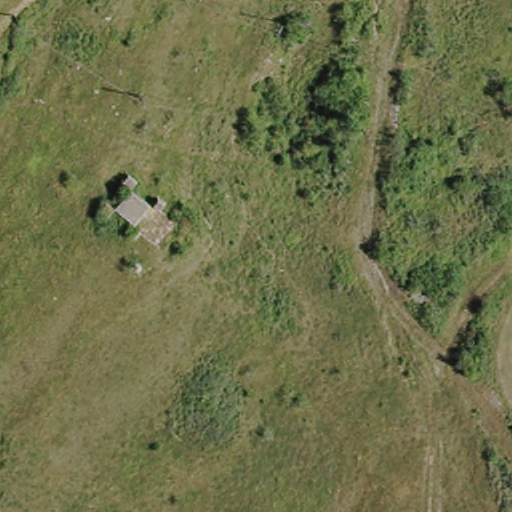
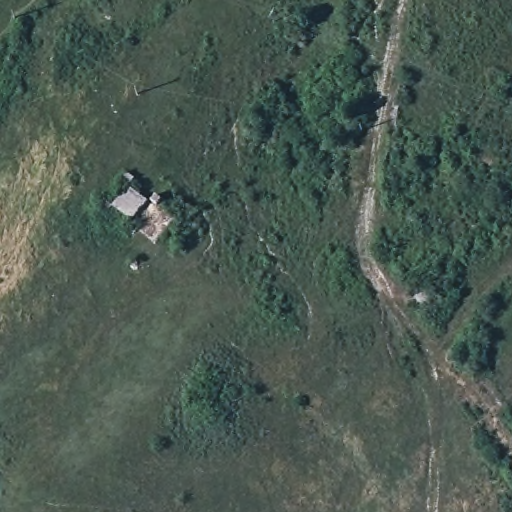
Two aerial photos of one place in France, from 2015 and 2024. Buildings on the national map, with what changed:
unchanged [(171,212),(151,234),(109,205),(126,181),(171,212)]

